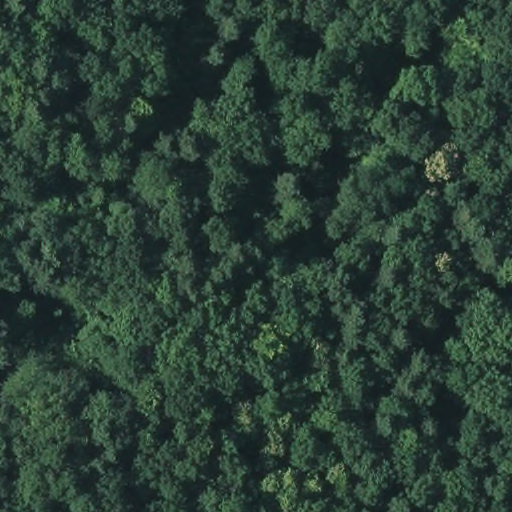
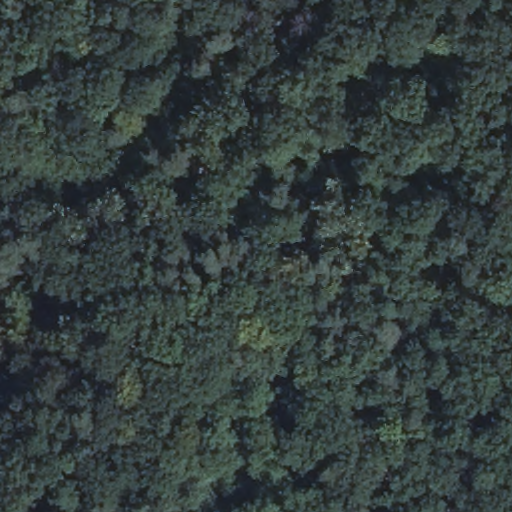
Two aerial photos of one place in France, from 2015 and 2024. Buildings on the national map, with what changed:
[]

